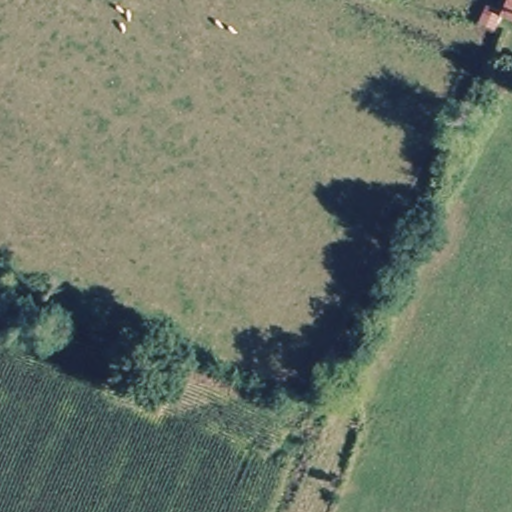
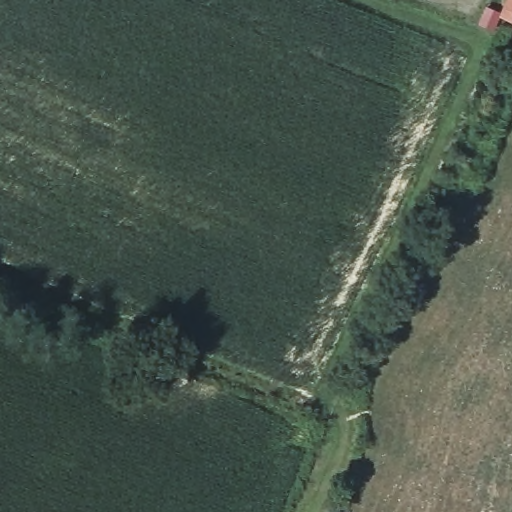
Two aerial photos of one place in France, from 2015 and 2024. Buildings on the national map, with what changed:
unchanged [(508,13),(512,2),(512,15),(508,13)]

